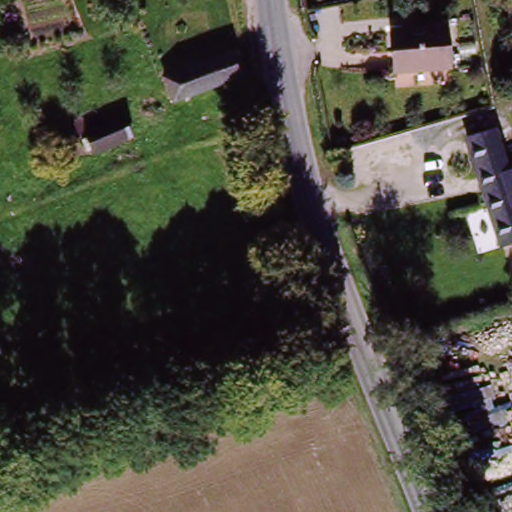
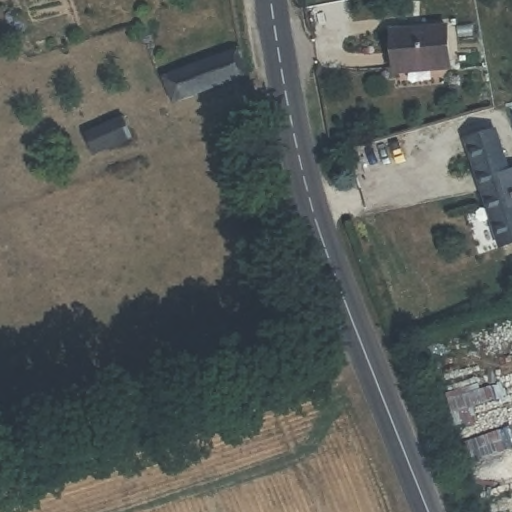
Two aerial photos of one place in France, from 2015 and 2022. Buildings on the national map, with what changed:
unchanged [(396,71),(391,31),(450,24),(454,64),(396,71)]
unchanged [(246,77),(171,106),(162,82),(243,51),(246,77)]
unchanged [(471,132),(496,124),(512,181),(512,249),(507,251),(471,132)]
unchanged [(137,149),(96,164),(89,140),(127,126),(137,149)]

